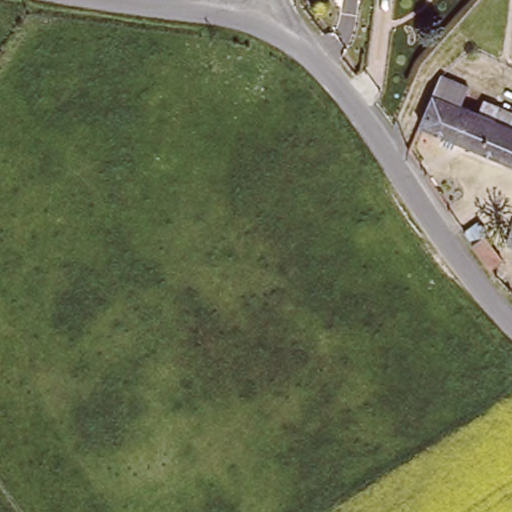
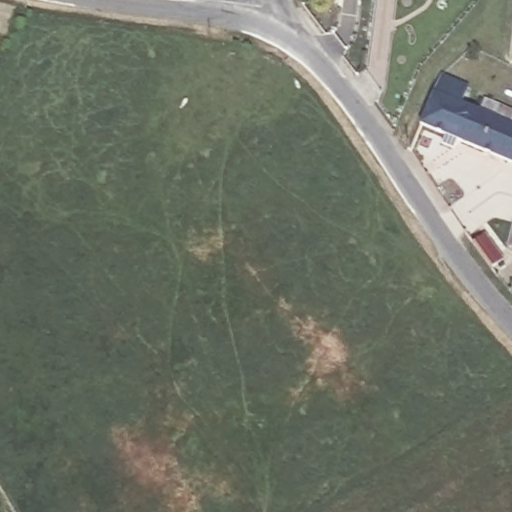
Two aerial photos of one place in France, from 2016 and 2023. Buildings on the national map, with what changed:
unchanged [(440,73),(473,84),(469,99),(512,120),(512,164),(417,128),(440,73)]

